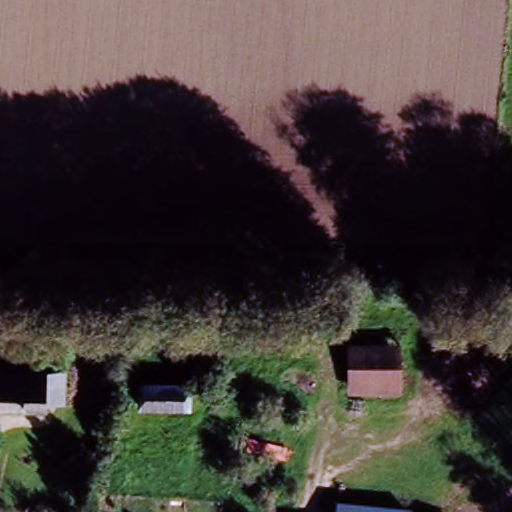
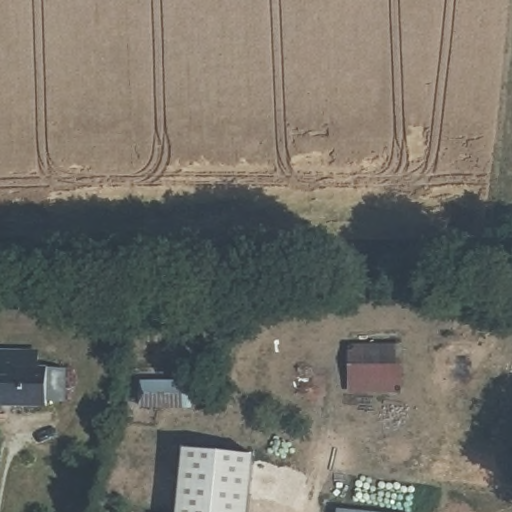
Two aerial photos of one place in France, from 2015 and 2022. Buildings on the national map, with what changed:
unchanged [(348,390),(348,347),(399,347),(399,391),(348,390)]
unchanged [(35,379),(60,381),(59,414),(0,410),(0,357),(36,360),(35,379)]
unchanged [(139,410),(139,386),(189,390),(188,412),(139,410)]
new [(251,458),(245,512),(173,512),(179,451),(251,458)]
unchanged [(357,512),(334,512),(334,510),(357,512)]

